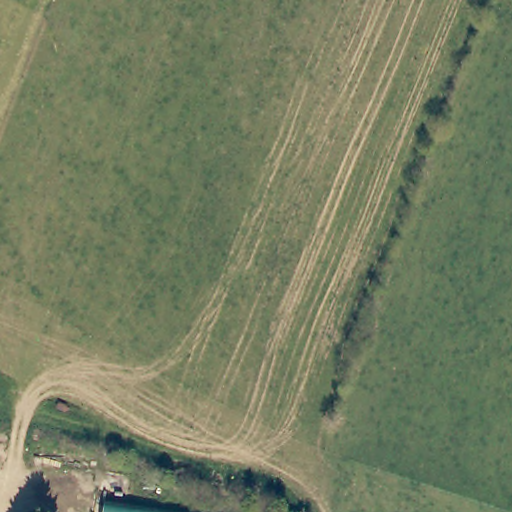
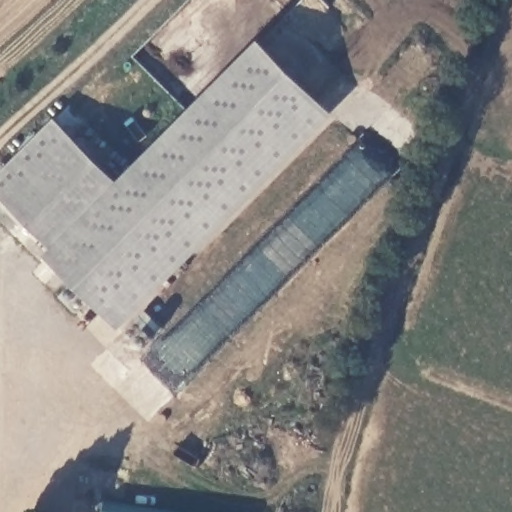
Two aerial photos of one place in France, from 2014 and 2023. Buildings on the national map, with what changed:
new [(54,119),(117,181),(260,39),(334,113),(119,327),(44,254),(50,245),(0,196),(0,172),(54,119)]
unchanged [(102,505),(158,512),(101,512),(102,505)]

